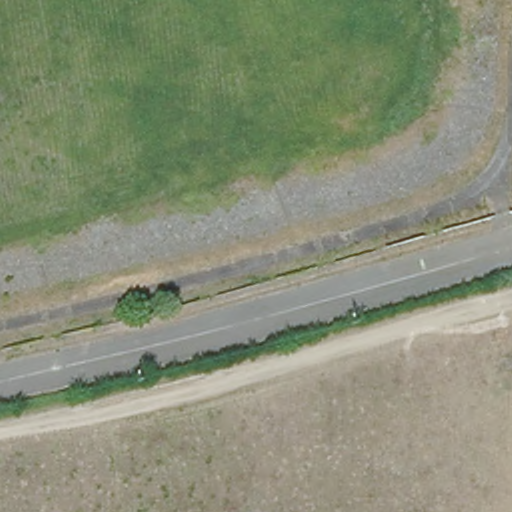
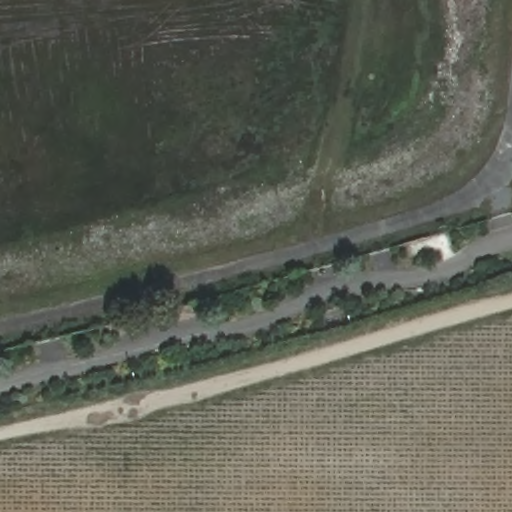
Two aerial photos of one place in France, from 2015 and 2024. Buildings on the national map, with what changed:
[]

